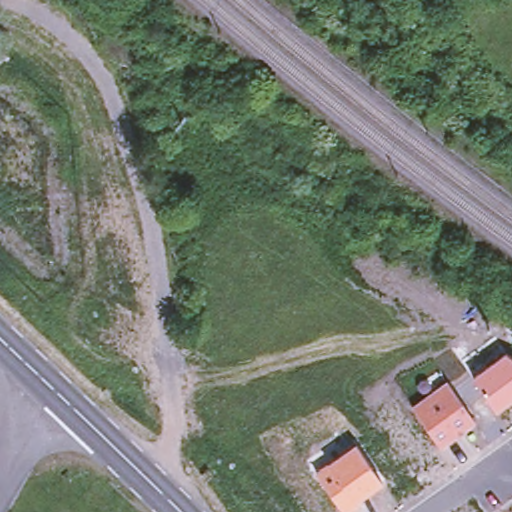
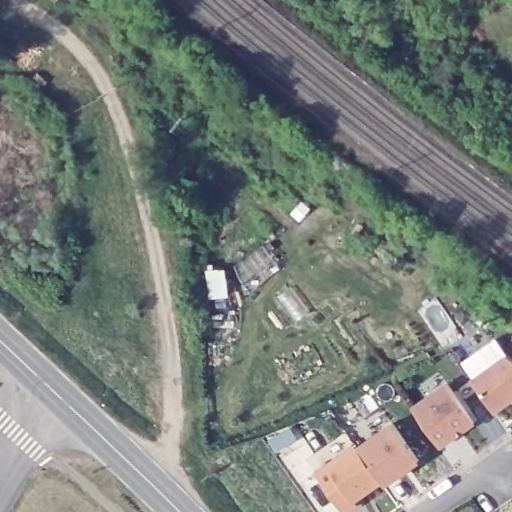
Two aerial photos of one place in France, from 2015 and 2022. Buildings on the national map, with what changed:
unchanged [(507,358),(512,361),(512,401),(495,413),(472,381),(507,358)]
unchanged [(448,386),(475,424),(439,449),(412,410),(448,386)]
new [(420,461),(385,486),(381,482),(357,446),(391,422),(420,461)]
unchanged [(381,482),(355,500),(357,504),(347,512),(343,512),(316,474),(357,446),(381,482)]

